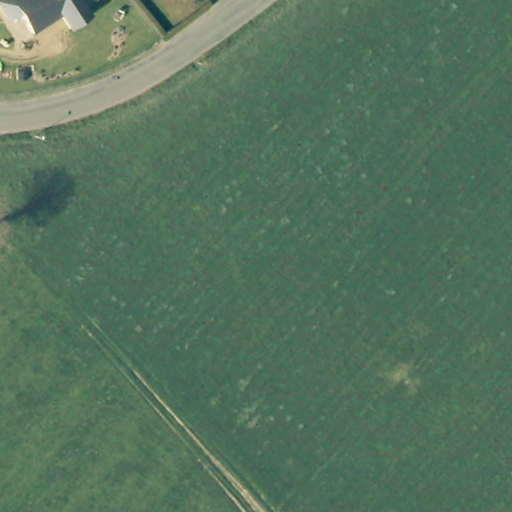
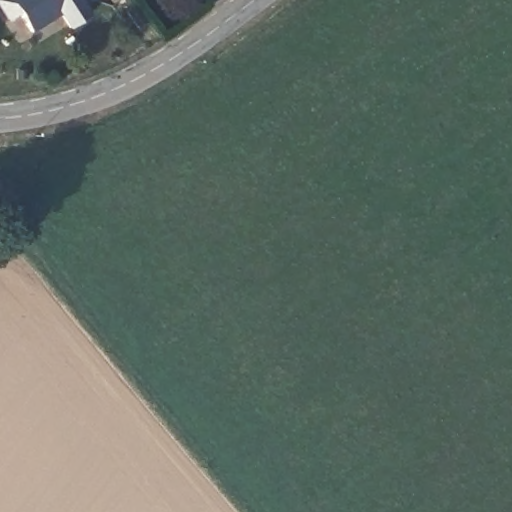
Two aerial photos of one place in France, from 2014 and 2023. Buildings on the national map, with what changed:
unchanged [(87,16),(68,29),(59,14),(29,32),(17,14),(7,20),(0,10),(0,0),(90,0),(81,6),(87,16)]

